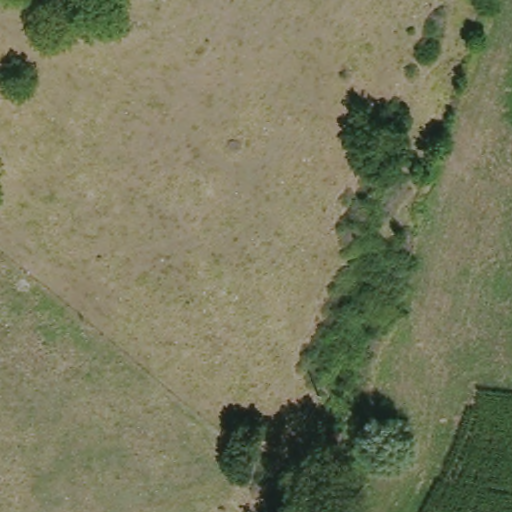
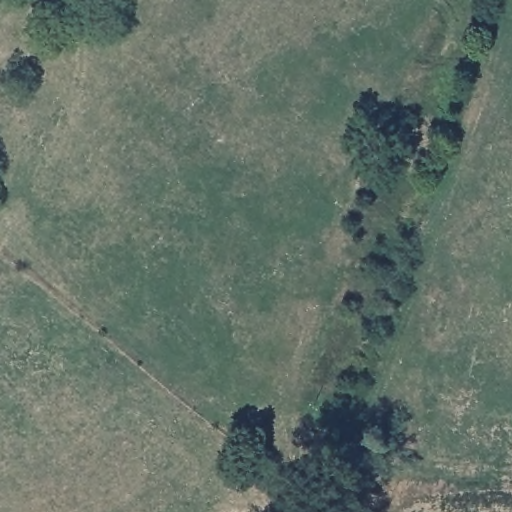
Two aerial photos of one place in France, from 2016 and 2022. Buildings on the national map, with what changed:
[]

